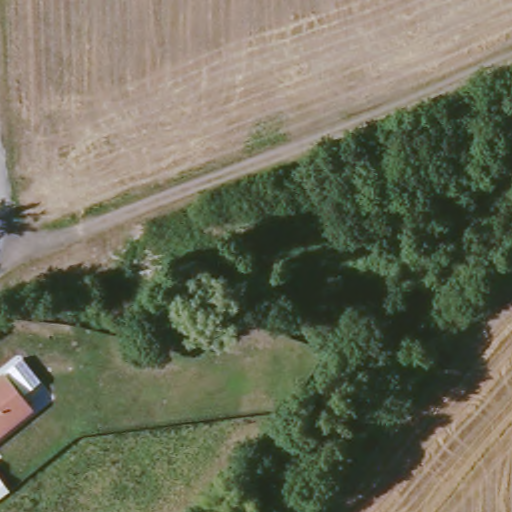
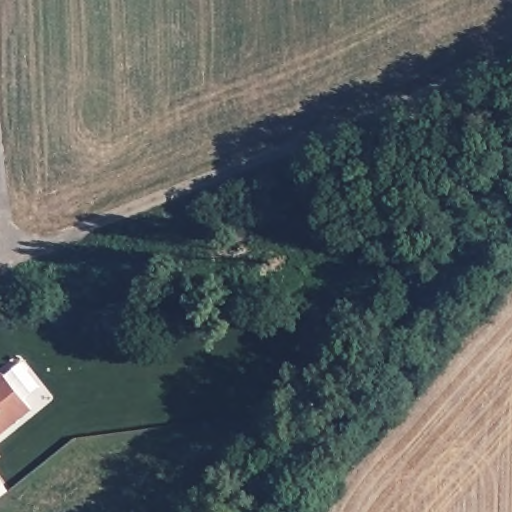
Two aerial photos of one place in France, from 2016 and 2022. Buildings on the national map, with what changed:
unchanged [(31,411),(0,436),(0,381),(5,377),(31,411)]

